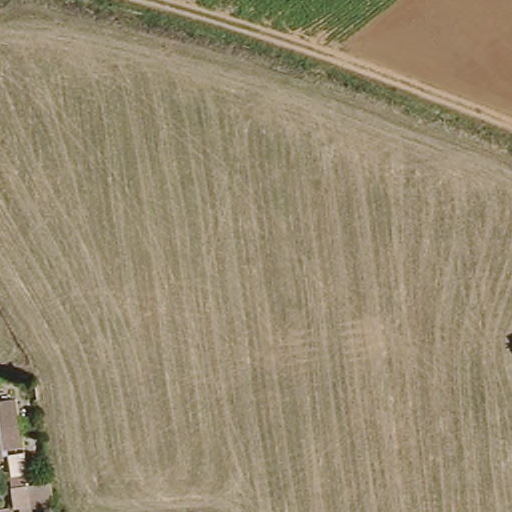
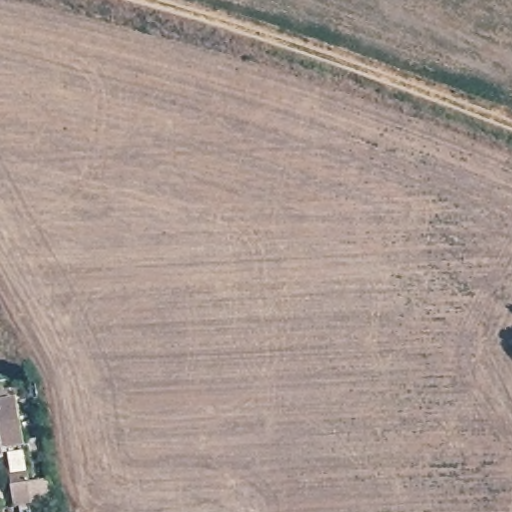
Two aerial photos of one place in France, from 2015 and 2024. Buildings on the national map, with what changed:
unchanged [(0,450),(1,461),(0,461),(0,406),(11,405),(18,449),(0,450)]
unchanged [(53,503),(35,506),(35,503),(18,506),(15,486),(14,474),(33,472),(35,483),(50,481),(53,503)]

